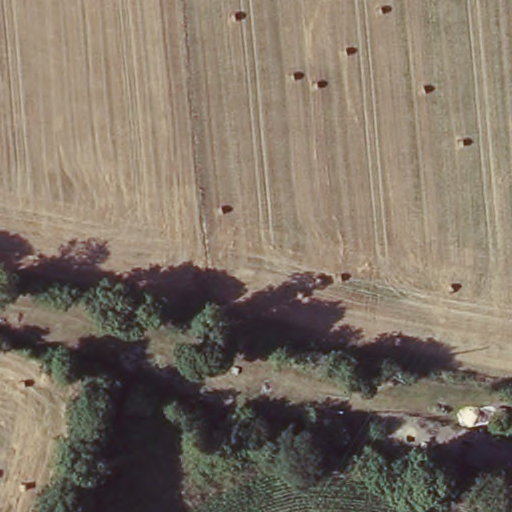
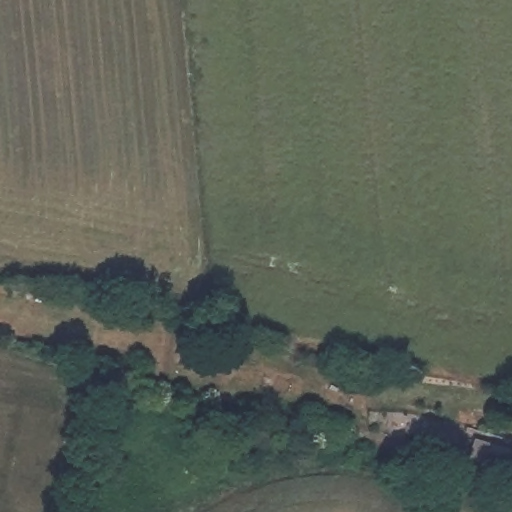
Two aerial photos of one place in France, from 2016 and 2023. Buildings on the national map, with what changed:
unchanged [(474,439),(512,451),(512,473),(468,459),(474,439)]

